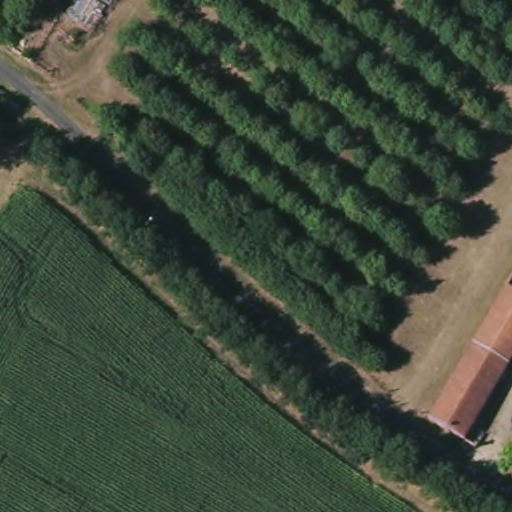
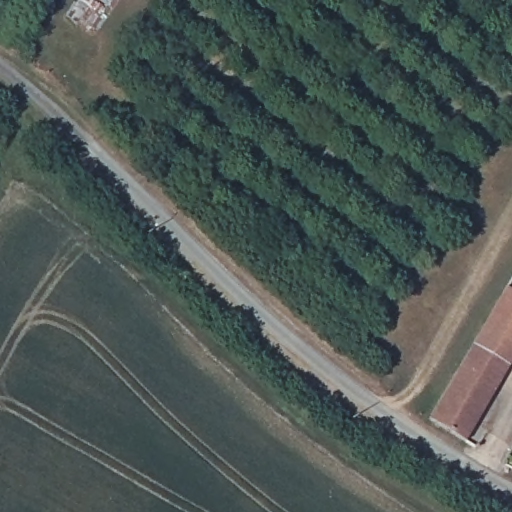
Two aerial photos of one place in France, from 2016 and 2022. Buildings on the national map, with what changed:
unchanged [(473,351),(506,294),(512,297),(512,363),(507,370),(473,351)]
unchanged [(431,426),(473,351),(507,370),(464,446),(431,426)]

